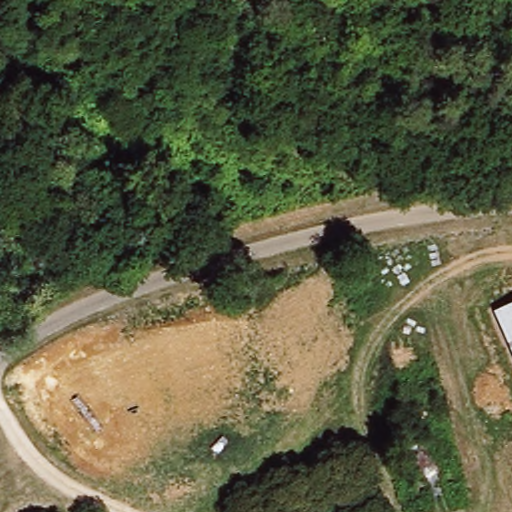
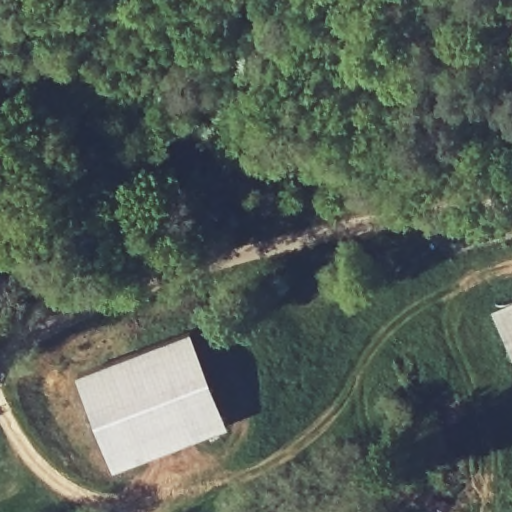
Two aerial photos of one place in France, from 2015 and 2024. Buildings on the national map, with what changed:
unchanged [(512,305),(512,349),(497,312),(512,305)]
new [(189,330),(225,423),(113,466),(76,372),(189,330)]

